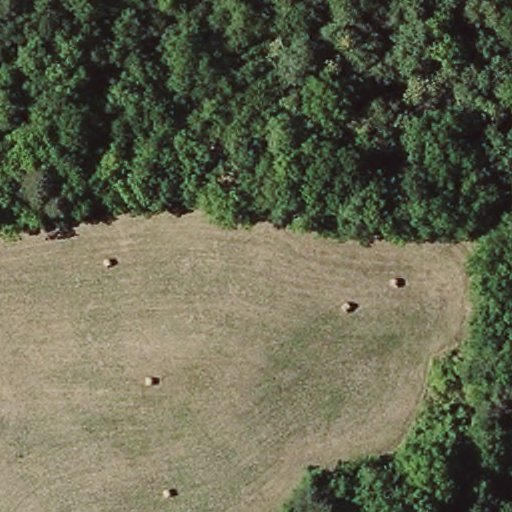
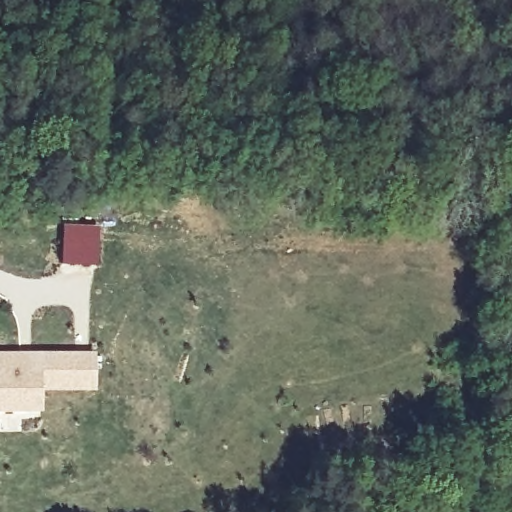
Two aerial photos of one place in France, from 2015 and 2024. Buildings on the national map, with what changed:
new [(61,226),(101,227),(100,267),(60,266),(61,226)]
new [(95,392),(41,392),(41,413),(0,413),(0,354),(96,353),(95,392)]

